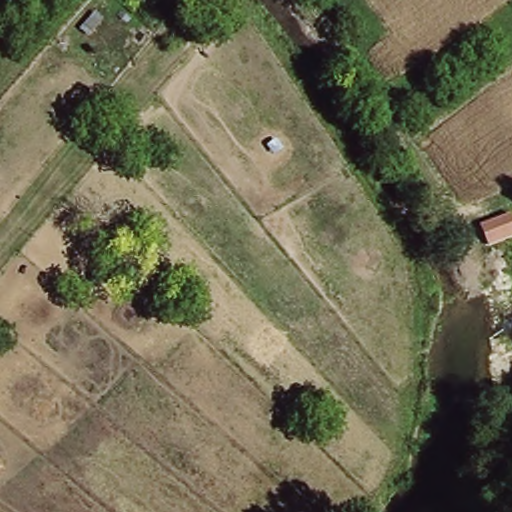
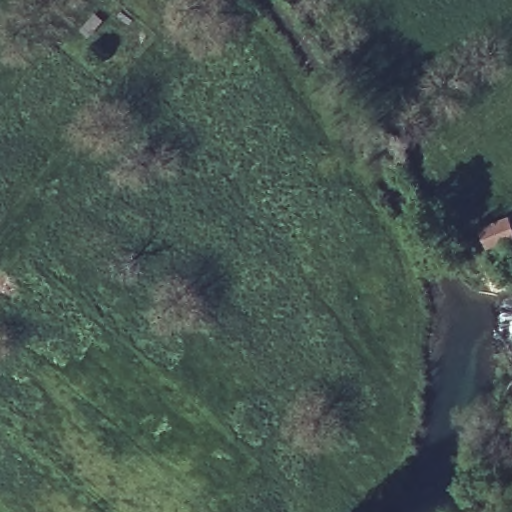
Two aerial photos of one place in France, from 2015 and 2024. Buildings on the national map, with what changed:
unchanged [(150,31),(143,41),(135,33),(141,24),(150,31)]
unchanged [(487,229),(512,218),(512,239),(494,247),(487,229)]

